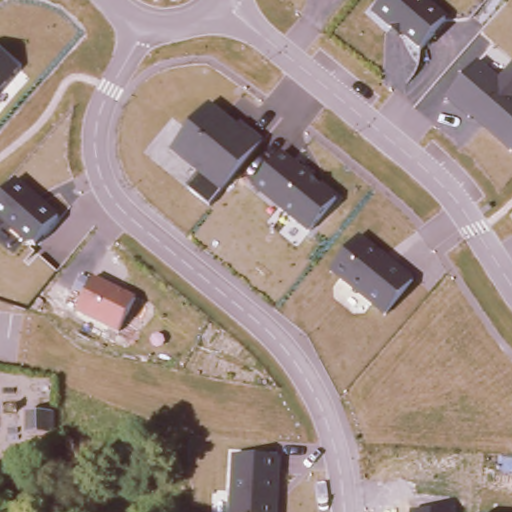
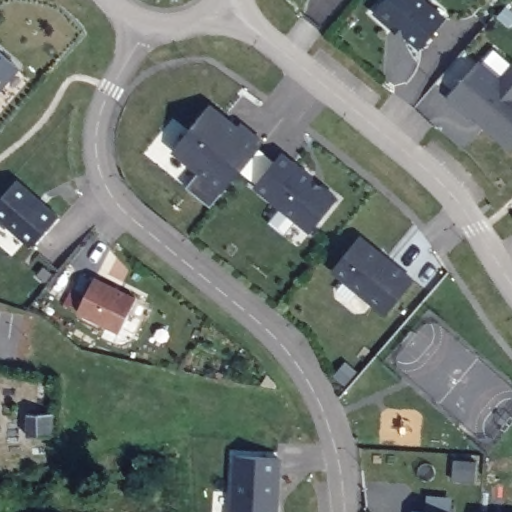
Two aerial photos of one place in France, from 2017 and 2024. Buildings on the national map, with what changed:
unchanged [(424,0),(447,19),(419,51),(404,38),(402,40),(372,14),(384,0),(424,0)]
unchanged [(18,69),(0,91),(0,54),(18,69)]
unchanged [(447,98),(478,61),(499,80),(512,65),(512,154),(512,155),(447,98)]
unchanged [(238,127),(241,123),(265,143),(210,207),(185,187),(197,174),(172,153),(210,105),(238,127)]
unchanged [(337,198),(309,233),(252,187),(280,154),(337,198)]
unchanged [(17,180),(59,218),(35,247),(27,247),(0,223),(0,199),(17,180)]
unchanged [(413,280),(383,316),(330,272),(360,236),(413,280)]
unchanged [(118,335),(77,313),(95,277),(137,298),(118,335)]
unchanged [(233,455),(282,458),(279,512),(230,512),(233,455)]
unchanged [(417,512),(411,512),(412,511),(417,512)]

